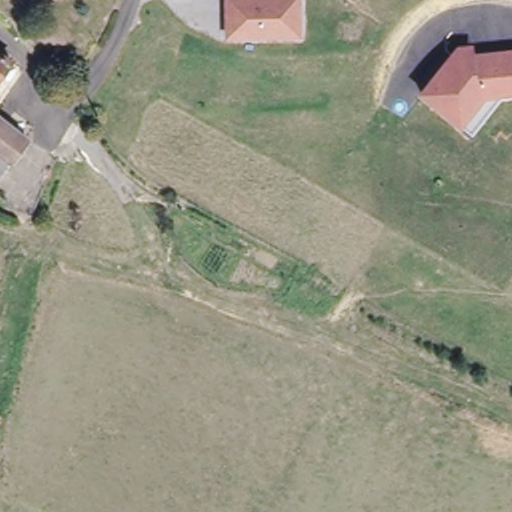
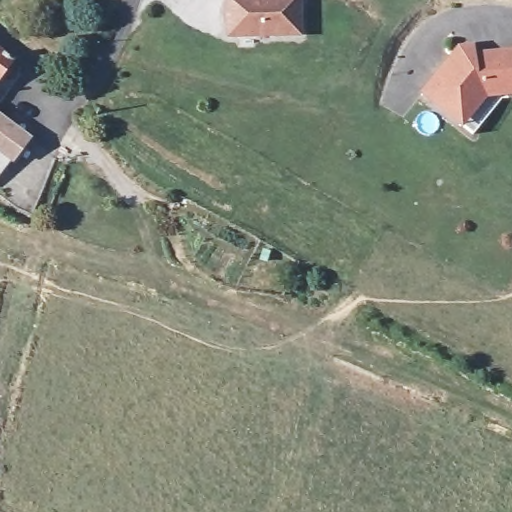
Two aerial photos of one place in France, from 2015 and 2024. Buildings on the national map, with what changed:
unchanged [(227,33),(228,0),(299,0),(298,34),(227,33)]
unchanged [(418,91),(451,54),(456,46),(468,46),(469,54),(512,51),(512,92),(502,93),(481,95),(466,112),(456,123),(436,106),(418,91)]
unchanged [(13,60),(0,78),(0,50),(13,60)]
unchanged [(27,138),(13,156),(0,146),(0,115),(27,138)]
unchanged [(13,156),(0,174),(0,146),(13,156)]

